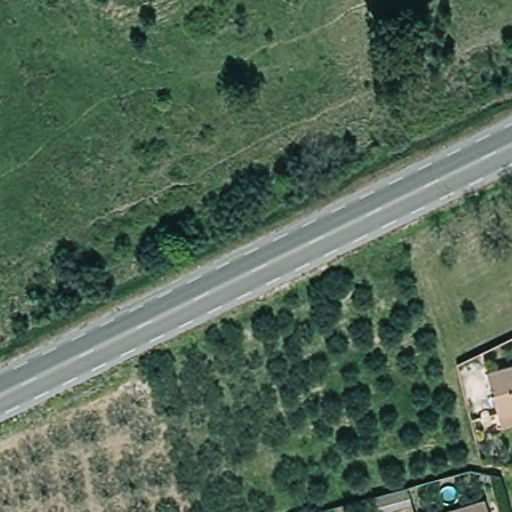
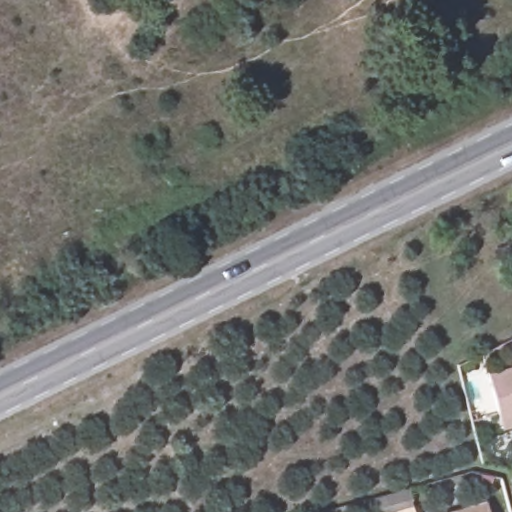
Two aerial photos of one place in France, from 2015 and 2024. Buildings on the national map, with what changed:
unchanged [(502,424),(499,414),(488,370),(512,364),(512,421),(502,424)]
unchanged [(373,499),(407,490),(413,508),(414,512),(377,512),(373,499)]
unchanged [(484,503),(487,512),(453,512),(484,503)]

